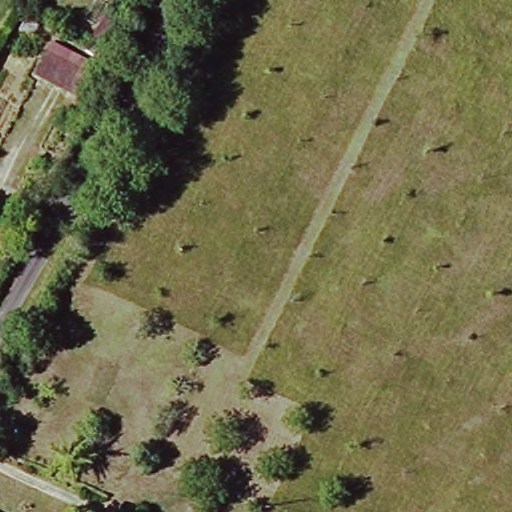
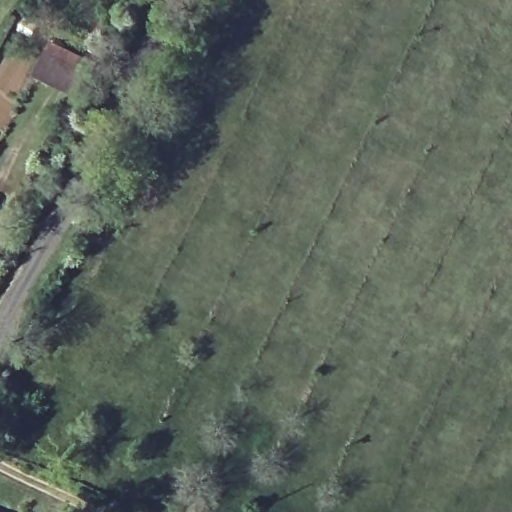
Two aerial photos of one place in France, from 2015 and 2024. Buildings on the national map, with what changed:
unchanged [(78,70),(68,91),(39,76),(49,55),(78,70)]

